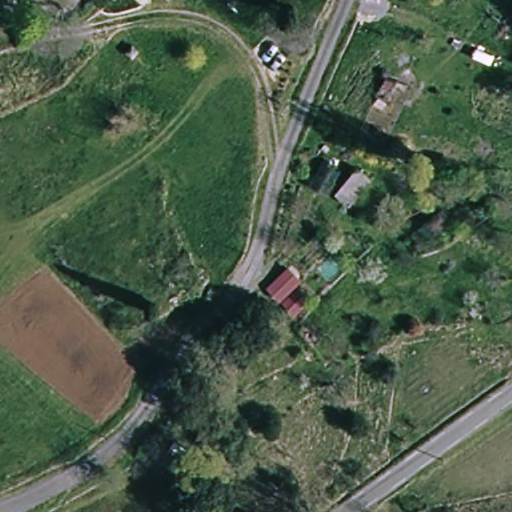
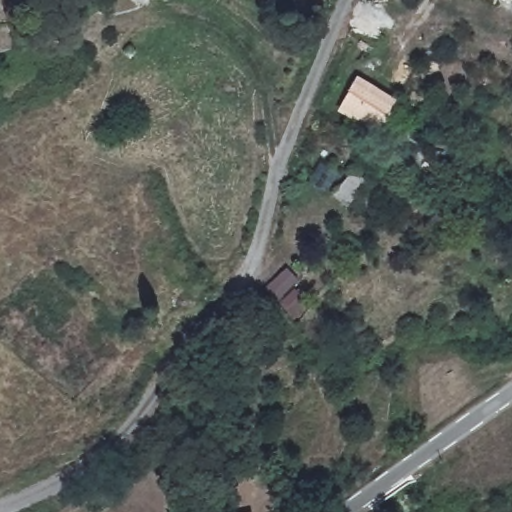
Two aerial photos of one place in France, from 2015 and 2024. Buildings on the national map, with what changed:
new [(358,75),(400,100),(379,136),(338,111),(358,75)]
unchanged [(337,200),(357,173),(371,185),(351,211),(337,200)]
unchanged [(278,272),(294,285),(275,312),(266,307),(260,298),(278,272)]
unchanged [(286,307),(296,313),(286,329),(277,320),(286,307)]
unchanged [(256,511),(256,512),(253,512),(256,511)]

